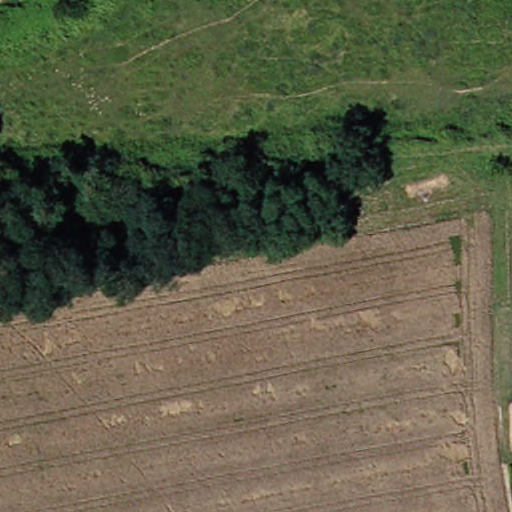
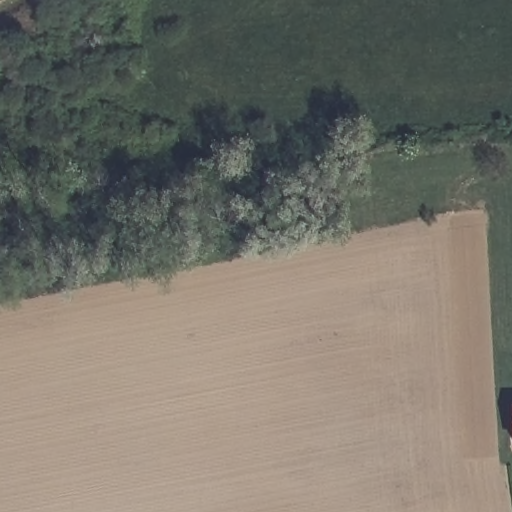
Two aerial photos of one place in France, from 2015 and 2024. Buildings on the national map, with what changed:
unchanged [(503,406),(512,405),(512,441),(503,441),(503,406)]

